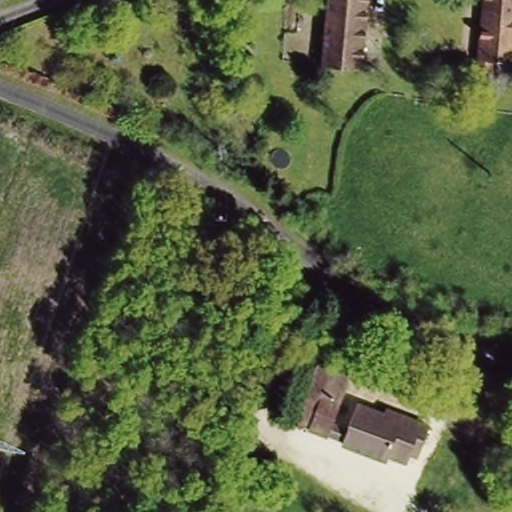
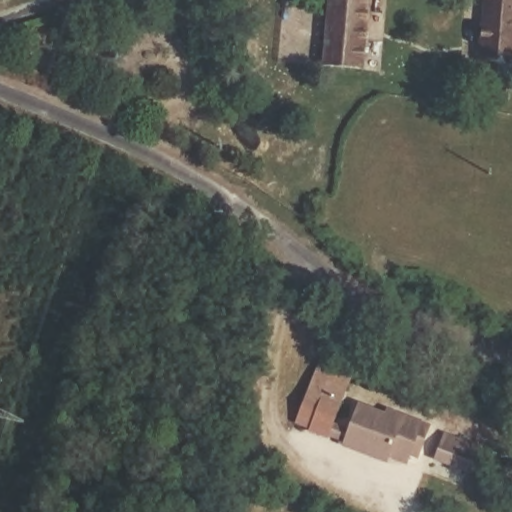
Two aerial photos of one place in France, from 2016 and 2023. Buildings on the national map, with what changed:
unchanged [(373,0),(365,76),(326,68),(337,0),(373,0)]
unchanged [(486,0),(512,0),(512,31),(485,29),(486,0)]
unchanged [(338,361),(326,387),(347,392),(331,436),(292,420),(319,358),(338,361)]
unchanged [(398,416),(399,411),(429,424),(413,466),(343,438),(357,399),(398,416)]

